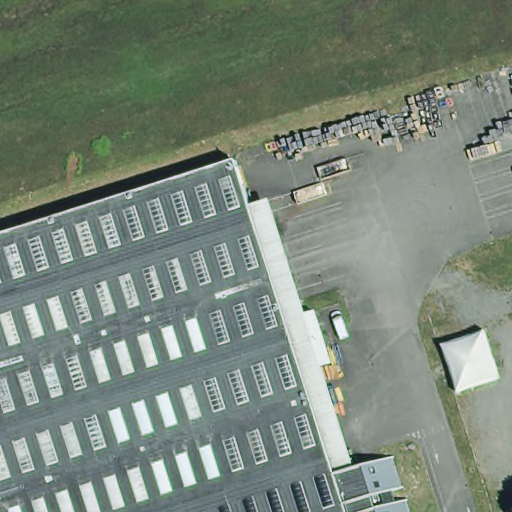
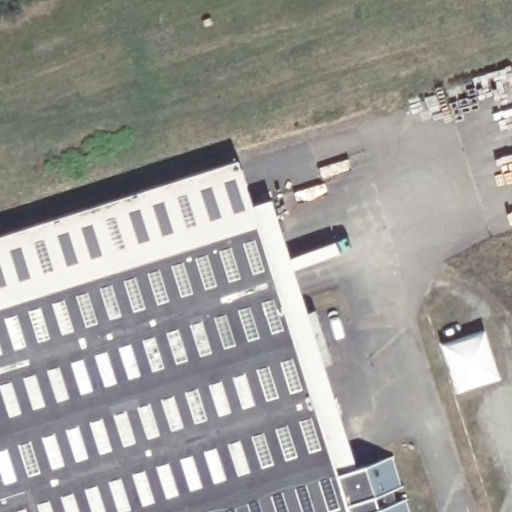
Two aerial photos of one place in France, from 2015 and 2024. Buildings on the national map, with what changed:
unchanged [(386,415),(396,449),(391,452),(395,463),(401,462),(416,509),(406,512),(0,512),(0,249),(245,167),(337,432),(386,415)]
unchanged [(486,334),(499,381),(459,395),(443,345),(486,334)]

